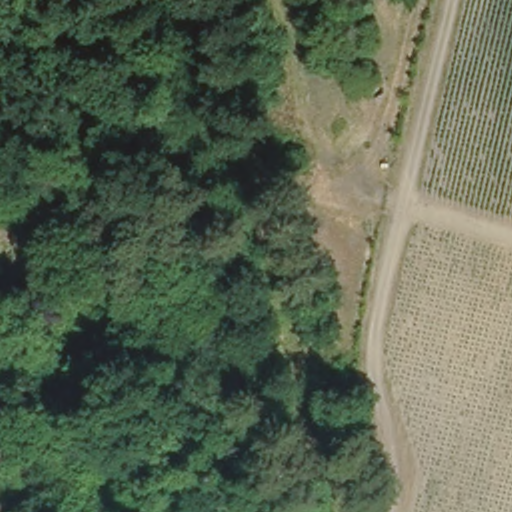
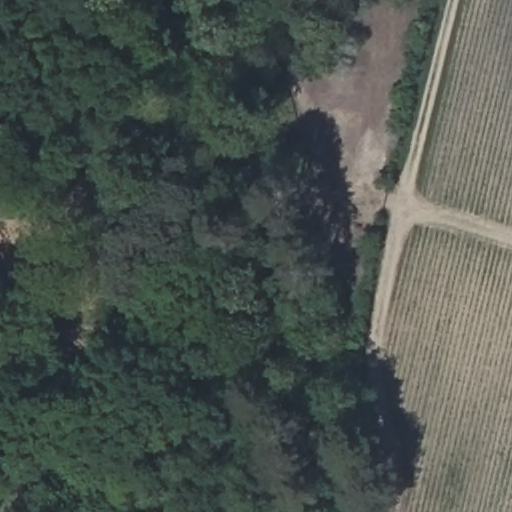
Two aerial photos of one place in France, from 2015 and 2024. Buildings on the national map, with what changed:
[]

